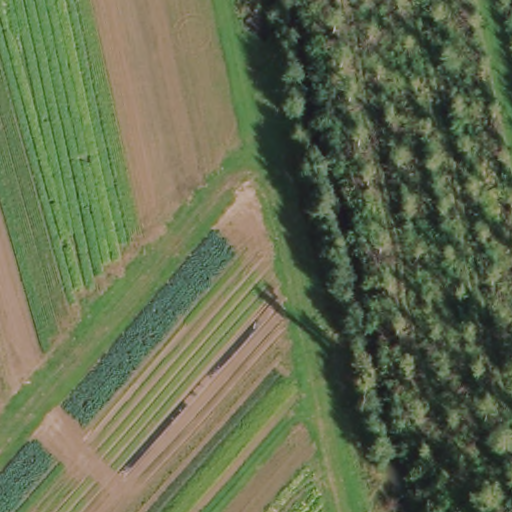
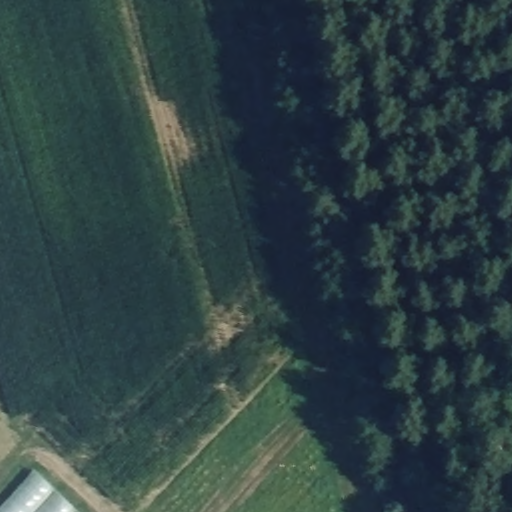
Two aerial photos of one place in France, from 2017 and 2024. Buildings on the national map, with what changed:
new [(33,471),(77,512),(0,512),(0,507),(33,471)]

